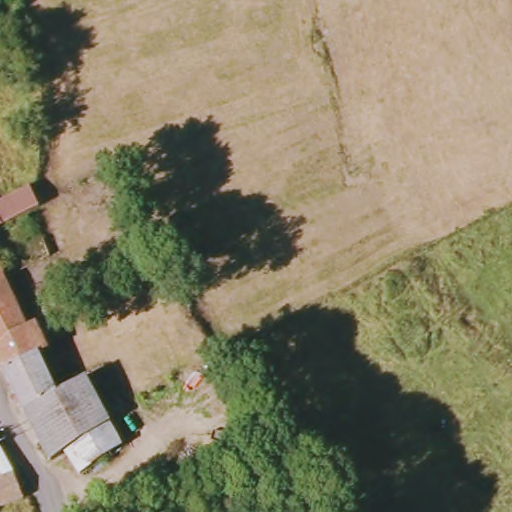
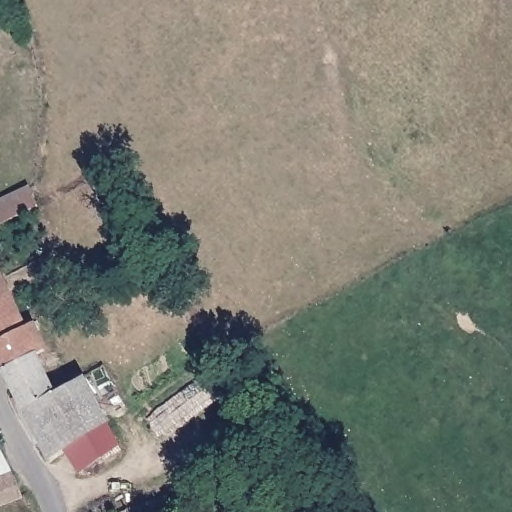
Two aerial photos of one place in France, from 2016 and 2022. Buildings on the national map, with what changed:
unchanged [(34,285),(47,310),(28,319),(42,351),(33,357),(53,397),(82,383),(117,452),(73,474),(60,452),(42,461),(0,378),(0,284),(6,297),(34,285)]
unchanged [(22,500),(0,509),(0,442),(13,477),(22,500)]

